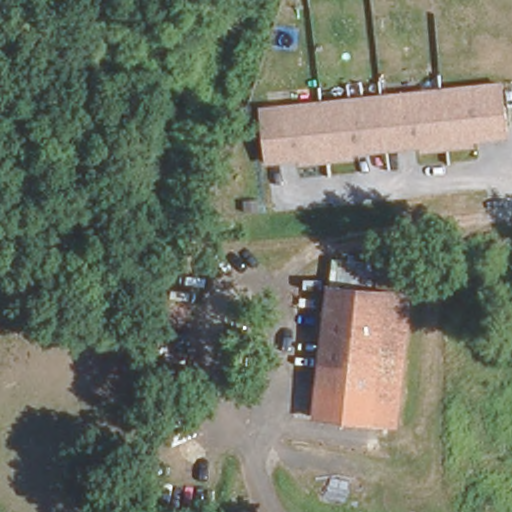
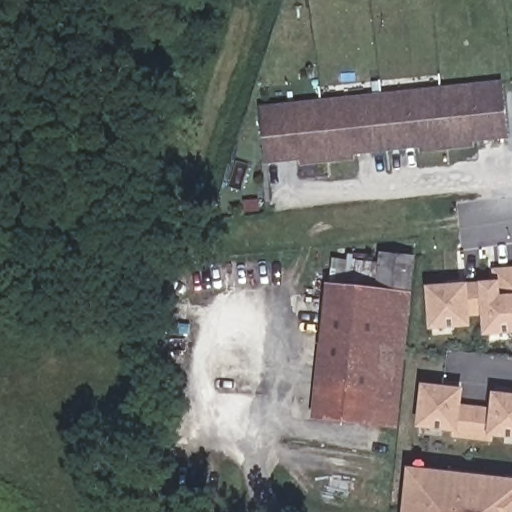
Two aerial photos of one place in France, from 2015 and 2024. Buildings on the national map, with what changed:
unchanged [(503,81),(509,138),(474,141),(475,149),(421,155),(420,147),(355,154),(355,160),(309,166),(308,158),(266,163),(259,107),(503,81)]
unchanged [(313,414),(330,286),(373,292),(378,253),(413,259),(391,425),(313,414)]
new [(492,270),(512,269),(512,336),(483,338),(483,318),(469,318),(469,330),(427,332),(423,287),(491,282),(492,270)]
new [(461,407),(490,409),(491,395),(512,397),(512,445),(412,433),(418,386),(462,392),(461,407)]
new [(512,512),(401,512),(404,472),(512,482),(512,512)]

